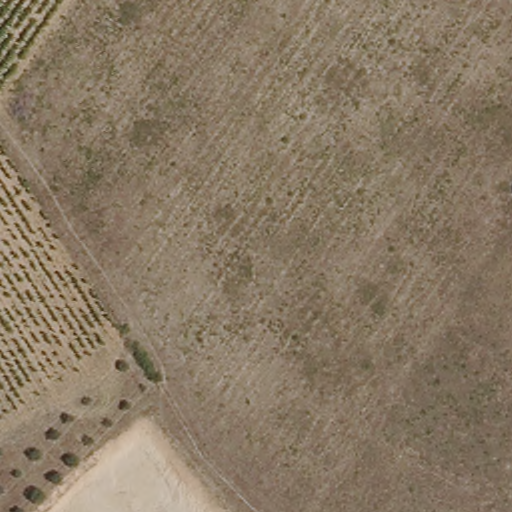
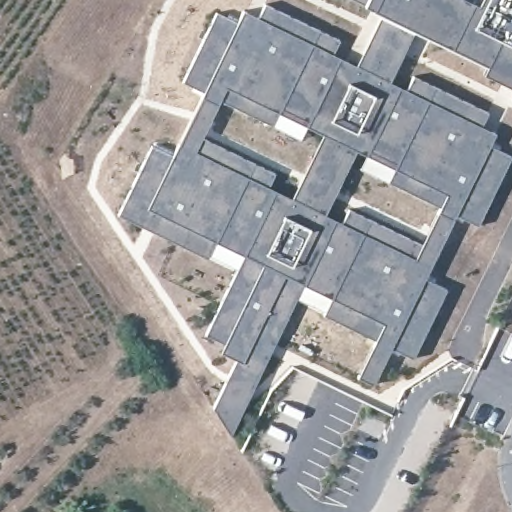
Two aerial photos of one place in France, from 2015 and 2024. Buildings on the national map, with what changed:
new [(373,381),(360,374),(378,339),(325,315),(327,312),(297,297),(232,436),(213,407),(235,360),(221,353),(226,345),(207,335),(239,269),(210,258),(119,214),(153,147),(172,156),(203,91),(184,81),(215,12),(239,22),(243,10),(261,18),(265,5),(338,39),(332,51),(359,64),(378,13),(365,6),(353,0),(512,0),(512,87),(483,72),(486,64),(408,26),(389,82),(406,88),(412,75),(489,109),(481,125),(494,130),(489,145),(510,155),(480,226),(455,215),(426,279),(446,290),(412,357),(391,347),(373,381)]

